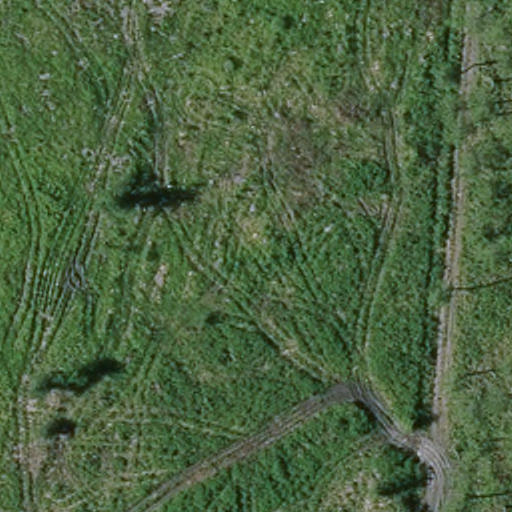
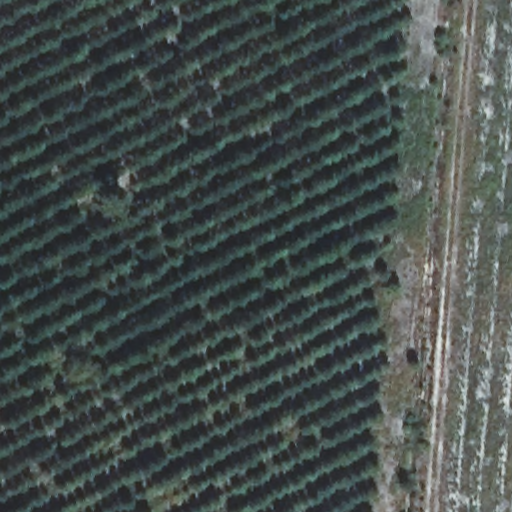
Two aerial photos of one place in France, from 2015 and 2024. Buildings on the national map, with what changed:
[]

